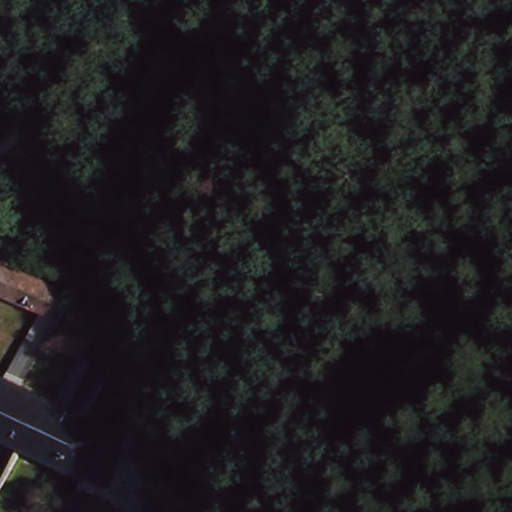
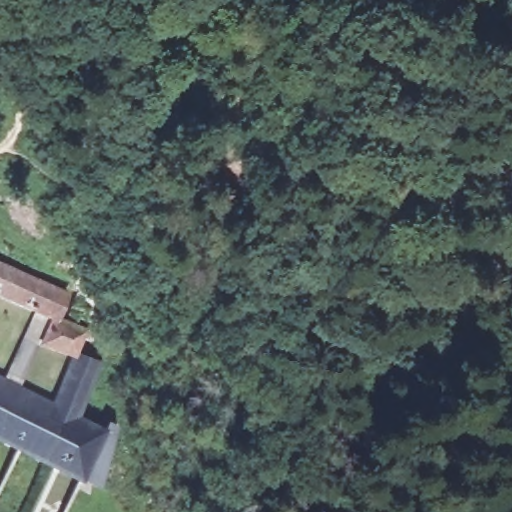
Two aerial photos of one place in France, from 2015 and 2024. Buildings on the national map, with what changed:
unchanged [(78,343),(90,347),(59,409),(89,423),(68,467),(0,435),(0,380),(37,396),(57,347),(21,329),(27,311),(0,298),(0,265),(77,299),(78,343)]

